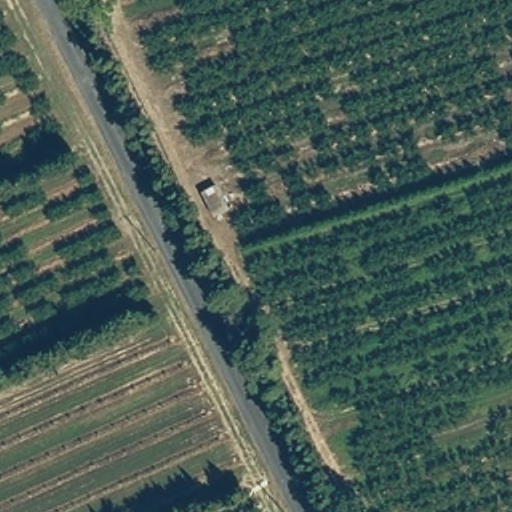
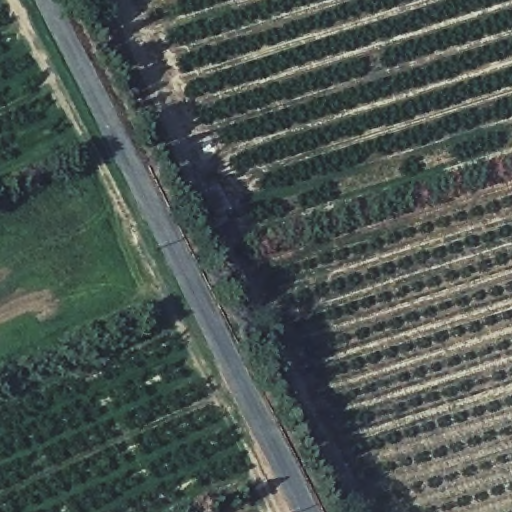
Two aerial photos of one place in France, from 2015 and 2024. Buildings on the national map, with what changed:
unchanged [(220,183),(231,211),(216,218),(202,194),(220,183)]

